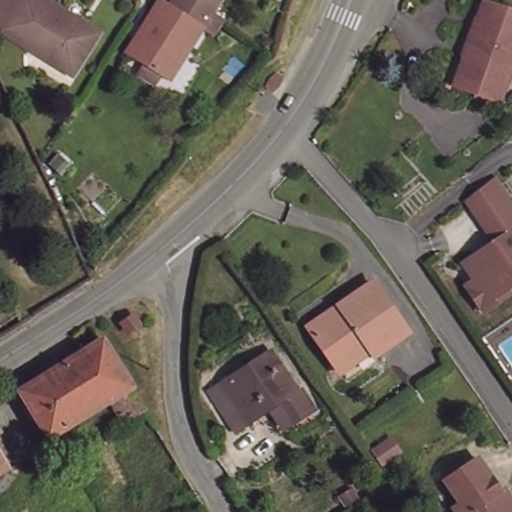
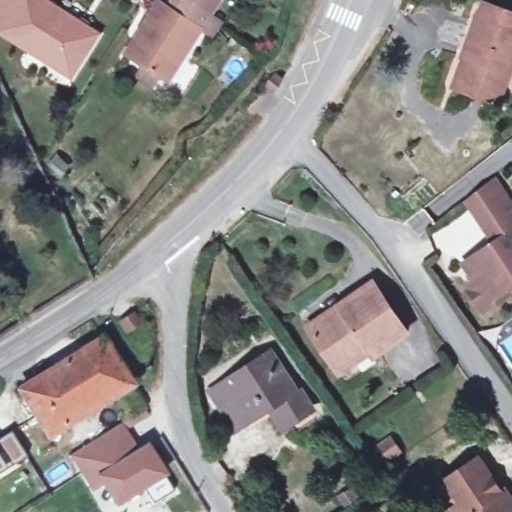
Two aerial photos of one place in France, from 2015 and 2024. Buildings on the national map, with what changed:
unchanged [(0,36),(0,12),(8,0),(35,0),(103,43),(80,79),(77,84),(46,65),(0,36)]
unchanged [(141,64),(123,53),(155,1),(165,7),(170,0),(188,0),(206,11),(218,19),(208,34),(196,26),(164,79),(155,73),(149,84),(134,74),(141,64)]
unchanged [(188,0),(213,0),(206,11),(188,0)]
unchanged [(483,8),(512,18),(512,68),(508,79),(502,76),(492,104),(453,91),(483,8)]
unchanged [(510,209),(481,229),(463,203),(491,182),(510,209)]
unchanged [(480,311),(462,286),(471,281),(460,264),(482,249),(489,250),(490,244),(481,229),(510,209),(512,212),(512,283),(502,289),(505,294),(480,311)]
unchanged [(331,366),(305,326),(327,310),(330,314),(338,309),(335,304),(368,282),(402,332),(370,355),(338,376),(331,366)]
unchanged [(128,328),(122,319),(132,313),(138,322),(128,328)]
unchanged [(119,422),(106,399),(44,438),(15,391),(98,339),(127,387),(140,409),(119,422)]
unchanged [(270,409),(235,431),(210,390),(270,350),(310,409),(290,422),(282,428),(270,409)]
new [(143,489),(117,504),(101,478),(88,486),(70,456),(120,424),(138,454),(147,448),(175,492),(153,504),(143,489)]
unchanged [(390,447),(398,459),(382,471),(373,458),(390,447)]
unchanged [(453,505),(460,500),(445,478),(477,455),(493,478),(488,481),(497,491),(504,486),(512,498),(512,512),(458,512),(453,505)]
unchanged [(0,473),(0,461),(5,469),(0,473)]
unchanged [(351,486),(360,499),(346,509),(337,496),(351,486)]

